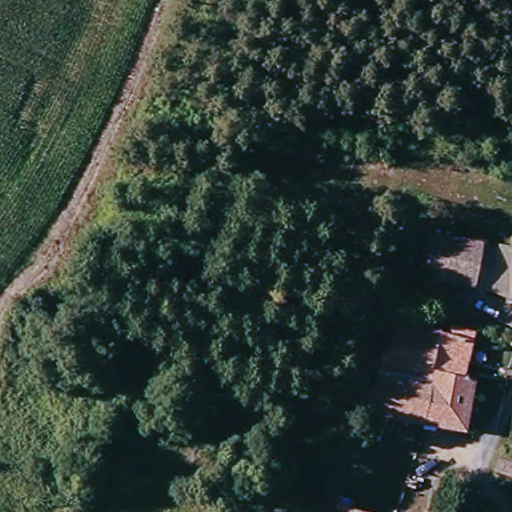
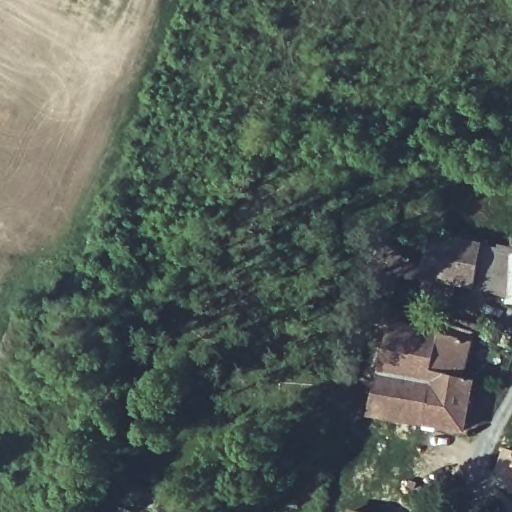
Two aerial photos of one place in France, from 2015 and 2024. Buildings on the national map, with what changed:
unchanged [(500,246),(496,271),(480,271),(478,287),(422,282),(429,239),(500,246)]
unchanged [(504,299),(506,255),(512,255),(512,299),(504,299)]
unchanged [(467,337),(456,382),(426,375),(435,343),(438,330),(467,337)]
unchanged [(384,333),(435,343),(426,375),(456,382),(467,385),(456,434),(365,416),(384,333)]
unchanged [(256,447),(268,453),(256,480),(244,474),(256,447)]
unchanged [(496,471),(503,451),(512,454),(512,476),(496,471)]

